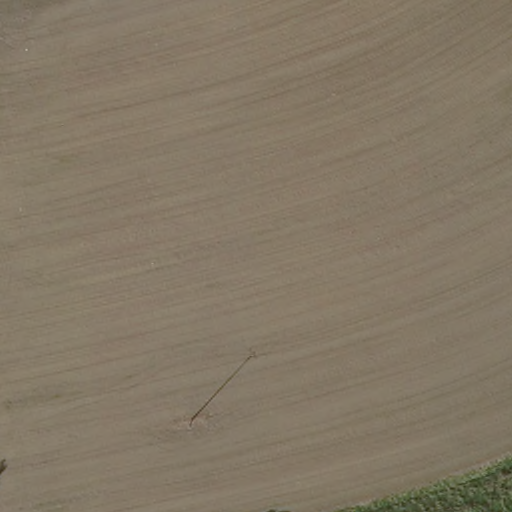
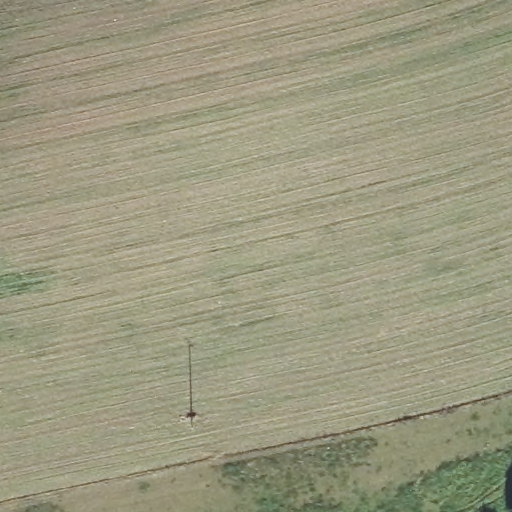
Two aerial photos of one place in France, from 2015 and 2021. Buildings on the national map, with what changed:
[]

